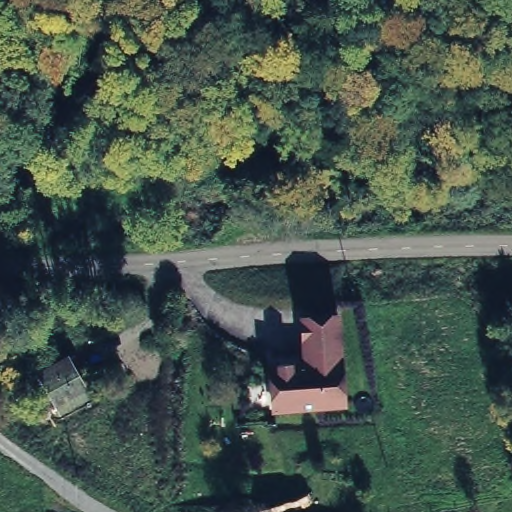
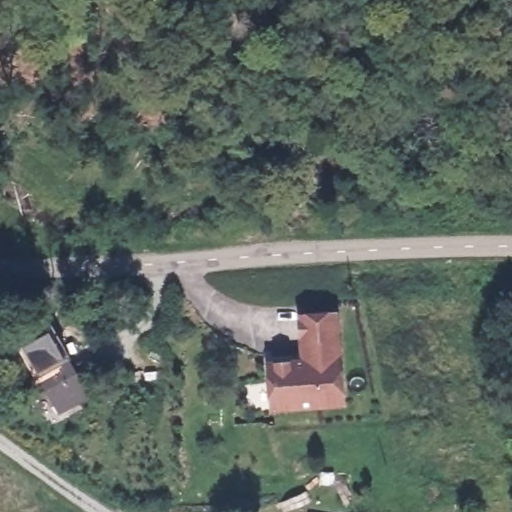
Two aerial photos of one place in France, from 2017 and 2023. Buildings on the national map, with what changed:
unchanged [(300,362),(297,315),(342,312),(349,413),(272,415),(270,365),(300,362)]
unchanged [(32,366),(64,350),(90,397),(54,413),(32,366)]

